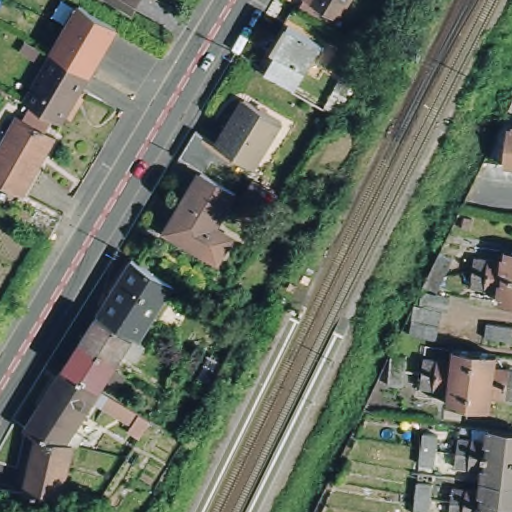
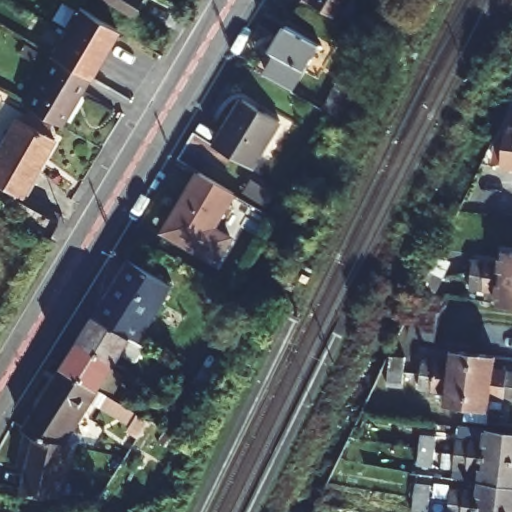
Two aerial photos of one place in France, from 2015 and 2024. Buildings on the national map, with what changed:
unchanged [(115,0),(135,0),(130,9),(115,0)]
unchanged [(299,0),(297,2),(293,0),(299,0)]
unchanged [(312,0),(345,0),(336,15),(312,0)]
unchanged [(80,9),(87,13),(90,15),(118,31),(90,79),(62,62),(51,56),(80,9)]
unchanged [(270,49),(285,24),(318,44),(290,89),(264,72),(276,52),(270,49)]
unchanged [(51,56),(62,62),(90,79),(62,127),(23,106),(51,56)]
unchanged [(338,120),(327,113),(344,81),(353,86),(338,120)]
unchanged [(234,238),(219,263),(168,232),(205,172),(190,163),(205,138),(221,147),(250,101),(286,122),(257,170),(235,156),(219,181),(237,192),(215,227),(234,238)]
unchanged [(18,113),(53,132),(34,167),(0,149),(0,148),(18,113)]
unchanged [(506,125),(512,126),(512,167),(500,165),(506,125)]
unchanged [(21,192),(0,180),(0,149),(34,167),(21,192)]
unchanged [(500,248),(512,249),(512,273),(469,268),(470,256),(499,260),(500,248)]
unchanged [(88,309),(122,254),(166,281),(131,336),(88,309)]
unchanged [(441,291),(430,286),(438,269),(440,267),(445,254),(457,260),(452,268),(450,275),(441,291)]
unchanged [(494,284),(467,281),(469,268),(512,273),(512,300),(492,297),(494,284)]
unchanged [(415,337),(418,322),(419,318),(421,307),(449,314),(447,323),(445,330),(442,343),(415,337)]
unchanged [(136,338),(126,353),(115,346),(107,357),(71,335),(88,309),(131,336),(136,338)]
unchanged [(488,331),(489,327),(512,331),(512,345),(487,342),(488,331)]
unchanged [(90,384),(55,361),(71,335),(107,357),(90,384)]
unchanged [(487,407),(465,404),(442,401),(443,388),(417,384),(420,371),(422,354),(447,358),(448,350),(471,352),(493,355),(493,364),(512,367),(512,396),(490,393),(487,407)]
unchanged [(393,386),(395,370),(398,352),(410,354),(407,372),(405,387),(393,386)]
unchanged [(56,437),(27,431),(15,423),(55,361),(90,384),(56,437)]
unchanged [(488,438),(490,425),(512,428),(512,454),(458,446),(460,435),(488,438)]
unchanged [(64,438),(51,491),(13,488),(27,431),(56,437),(64,438)]
unchanged [(421,461),(423,446),(425,431),(438,432),(436,448),(435,462),(421,461)]
unchanged [(485,466),(456,462),(458,446),(512,454),(512,480),(483,476),(485,466)]
unchanged [(482,486),(483,476),(512,480),(512,505),(452,496),(455,482),(482,486)]
unchanged [(415,510),(417,496),(419,478),(432,480),(430,498),(428,512),(415,510)]
unchanged [(452,496),(512,505),(512,512),(450,512),(452,496)]

